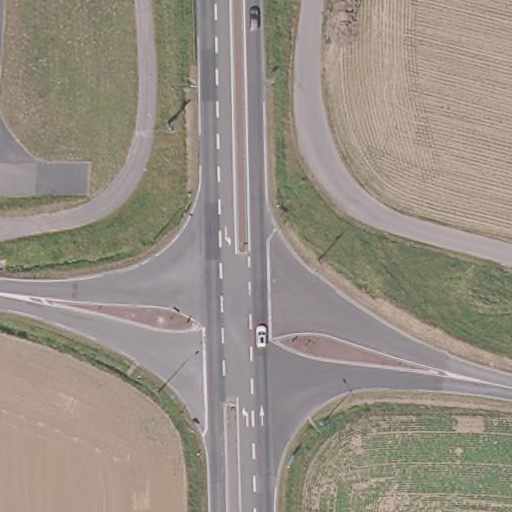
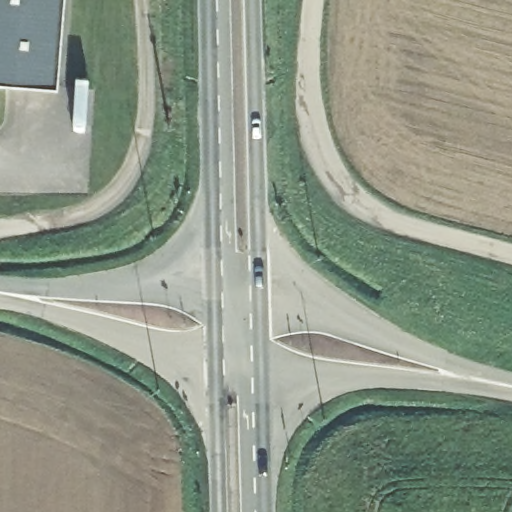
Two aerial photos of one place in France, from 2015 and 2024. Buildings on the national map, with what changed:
new [(56,87),(0,82),(0,0),(63,0),(56,87)]

